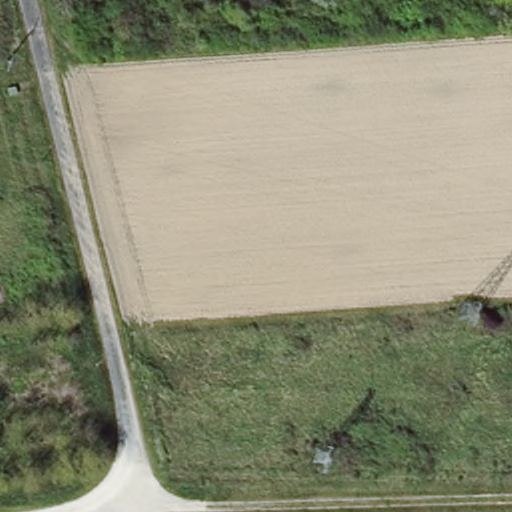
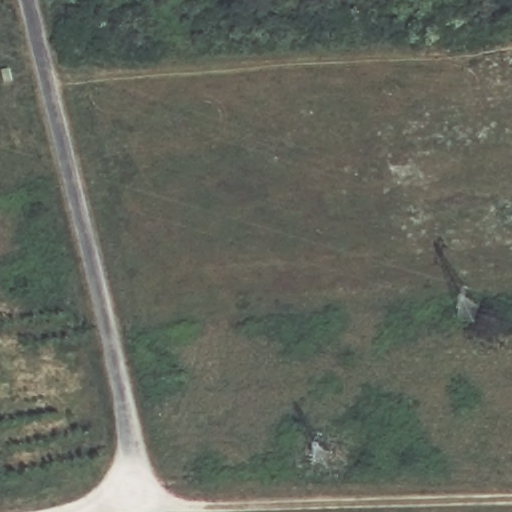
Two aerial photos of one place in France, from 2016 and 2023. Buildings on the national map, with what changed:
[]

